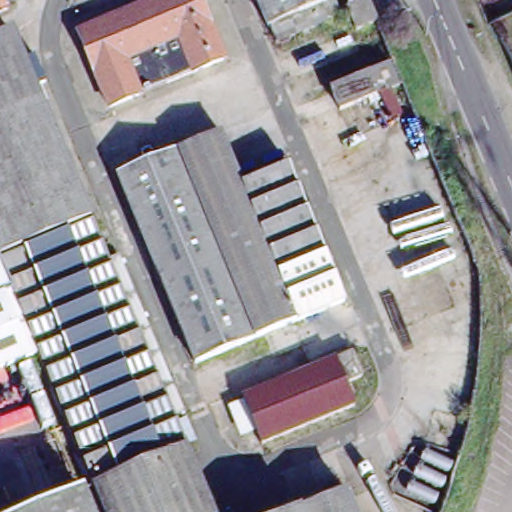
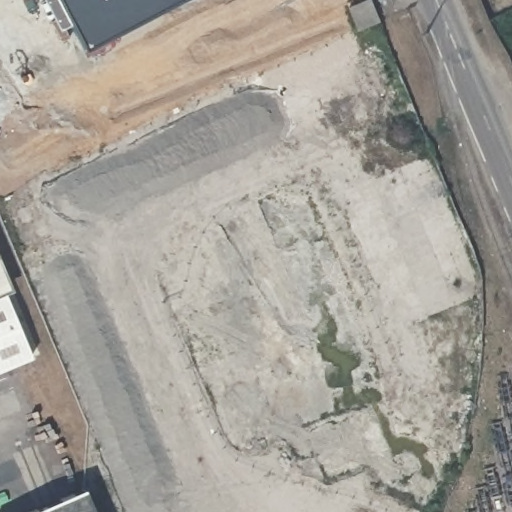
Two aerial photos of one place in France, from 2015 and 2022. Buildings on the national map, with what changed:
demolished [(0,12),(0,0),(6,0),(9,8),(0,12)]
new [(65,0),(188,0),(89,51),(65,0)]
demolished [(201,0),(224,57),(111,105),(81,30),(154,0),(201,0)]
demolished [(278,41),(272,25),(268,26),(258,0),(335,0),(341,15),(278,41)]
demolished [(350,8),(368,0),(369,0),(377,22),(358,29),(350,8)]
demolished [(84,487),(95,482),(0,255),(0,37),(15,31),(213,512),(94,512),(84,487)]
demolished [(331,87),(375,70),(391,62),(401,87),(392,90),(384,94),(340,111),(331,87)]
demolished [(219,131),(240,184),(285,166),(340,300),(193,362),(115,175),(219,131)]
unchanged [(4,295),(0,296),(0,284),(4,295)]
unchanged [(4,295),(30,357),(0,370),(0,296),(4,295)]
demolished [(348,350),(350,354),(361,350),(370,371),(364,373),(369,385),(346,395),(330,356),(348,350)]
demolished [(350,404),(258,443),(237,396),(330,356),(346,395),(350,404)]
unchanged [(84,487),(94,512),(25,512),(84,487)]
demolished [(347,491),(356,512),(297,512),(347,491)]
demolished [(233,512),(224,512),(231,509),(233,512)]

